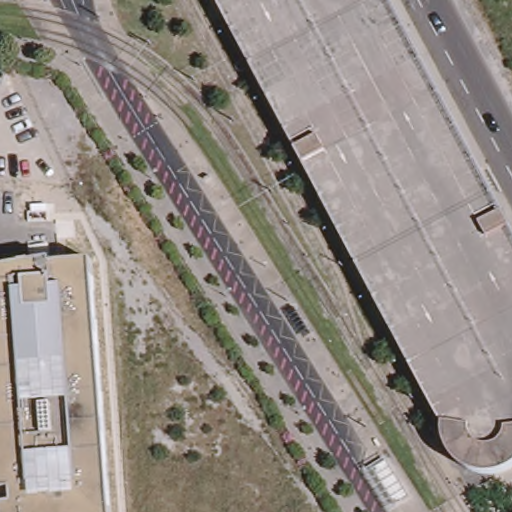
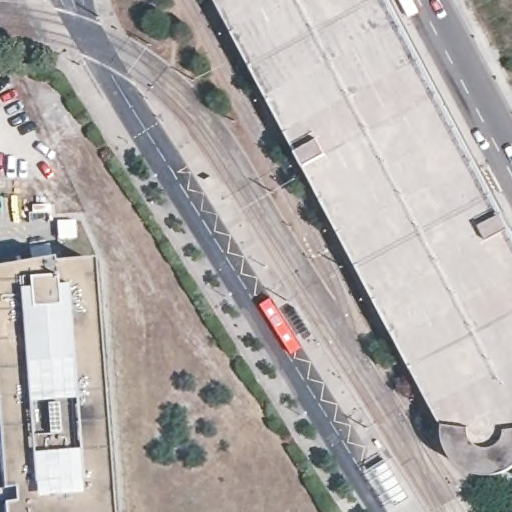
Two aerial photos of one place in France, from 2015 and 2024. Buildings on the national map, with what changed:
unchanged [(512,230),(512,468),(505,472),(493,474),(483,475),(472,471),(461,466),(454,459),(450,454),(447,447),(444,438),(443,433),(444,426),(445,419),(448,412),(435,409),(213,0),(388,0),(512,230)]
unchanged [(9,503),(8,499),(0,500),(0,266),(47,263),(47,267),(55,266),(88,264),(107,512),(0,512),(0,504),(9,503)]
unchanged [(343,382),(359,408),(352,413),(336,387),(343,382)]

